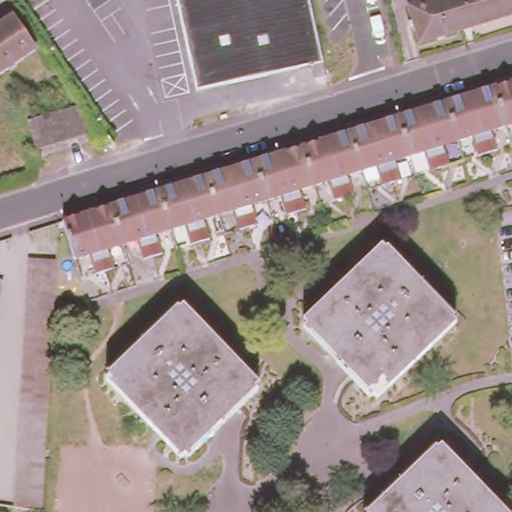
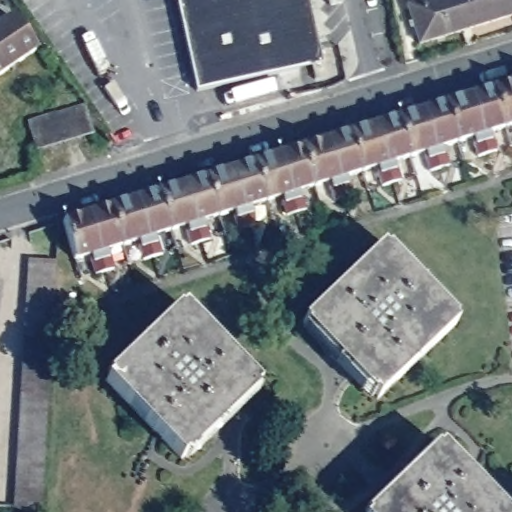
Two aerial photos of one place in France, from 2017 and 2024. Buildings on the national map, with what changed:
unchanged [(329,72),(320,73),(318,65),(201,90),(181,0),(313,0),(329,72)]
unchanged [(421,42),(410,3),(421,0),(455,0),(464,28),(421,42)]
unchanged [(512,14),(464,28),(455,0),(512,0),(512,14)]
unchanged [(0,70),(0,20),(13,11),(35,47),(0,70)]
unchanged [(498,87),(512,83),(512,125),(510,126),(498,87)]
unchanged [(498,87),(510,126),(496,130),(502,149),(493,152),(475,94),(498,87)]
unchanged [(475,94),(493,152),(483,155),(476,136),(463,140),(451,101),(475,94)]
unchanged [(55,107),(69,103),(77,100),(83,99),(91,129),(77,133),(63,137),(50,140),(35,145),(26,116),(41,111),(55,107)]
unchanged [(455,164),(445,167),(426,109),(451,101),(463,140),(448,145),(455,164)]
unchanged [(435,170),(428,151),(413,156),(401,117),(426,109),(445,167),(435,170)]
unchanged [(401,117),(413,156),(401,160),(406,179),(396,182),(378,124),(401,117)]
unchanged [(378,124),(396,182),(386,185),(380,166),(365,170),(354,131),(378,124)]
unchanged [(330,139),(354,131),(365,170),(351,175),(357,194),(348,197),(330,139)]
unchanged [(338,200),(332,181),(319,185),(307,146),(330,139),(348,197),(338,200)]
unchanged [(282,153),(307,146),(319,185),(305,189),(311,208),(301,211),(282,153)]
unchanged [(291,214),(285,196),(271,200),(258,161),(282,153),(301,211),(291,214)]
unchanged [(262,223),(252,226),(235,168),(258,161),(271,200),(256,204),(262,223)]
unchanged [(243,229),(238,211),(222,215),(210,175),(235,168),(252,226),(243,229)]
unchanged [(222,215),(208,219),(215,238),(205,241),(186,183),(210,175),(222,215)]
unchanged [(186,183),(205,241),(195,245),(189,225),(175,229),(163,190),(186,183)]
unchanged [(166,253),(156,256),(138,198),(163,190),(175,229),(161,234),(166,253)]
unchanged [(138,198),(156,256),(147,259),(142,239),(126,244),(115,205),(138,198)]
unchanged [(118,268),(110,271),(91,212),(115,205),(126,244),(112,249),(118,268)]
unchanged [(100,274),(95,254),(79,258),(67,220),(91,212),(110,271),(100,274)]
unchanged [(303,322),(383,246),(456,323),(377,399),(303,322)]
unchanged [(55,252),(40,505),(14,502),(28,250),(55,252)]
unchanged [(183,302),(258,379),(181,454),(106,375),(183,302)]
unchanged [(504,512),(372,512),(441,446),(504,512)]

